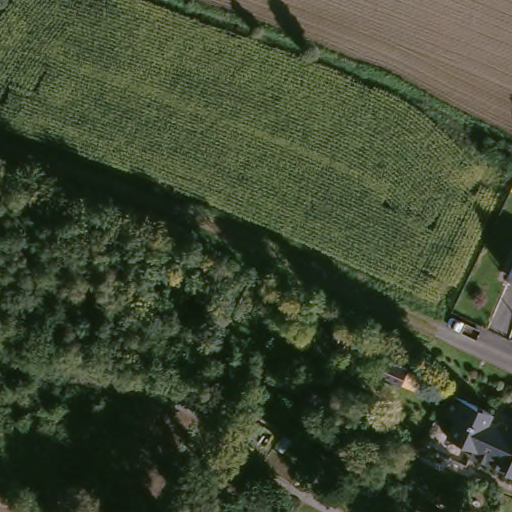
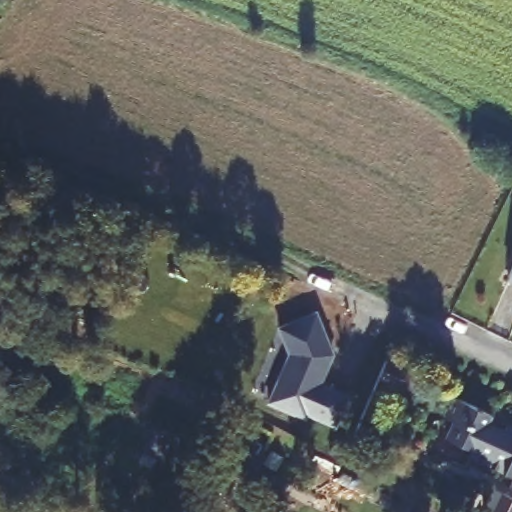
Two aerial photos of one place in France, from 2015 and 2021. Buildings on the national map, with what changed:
new [(280,379),(282,381),(293,358),(280,332),(317,316),(335,356),(328,372),(325,370),(319,384),(340,394),(326,423),(307,415),(305,419),(269,402),(280,379)]
unchanged [(452,433),(457,423),(446,418),(456,397),(493,414),(489,424),(508,433),(511,425),(512,426),(512,461),(452,433)]
unchanged [(473,459),(477,451),(449,439),(452,433),(512,461),(512,477),(473,459)]

